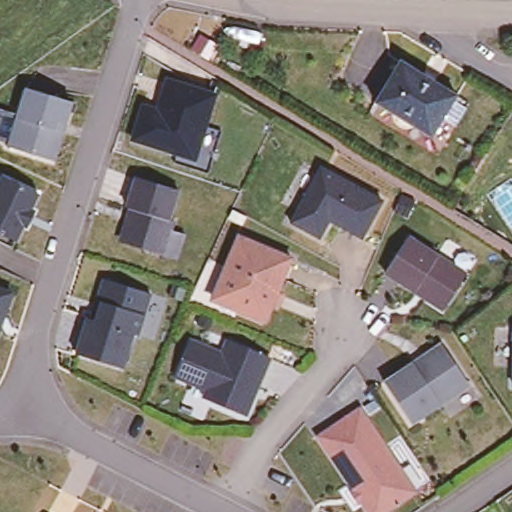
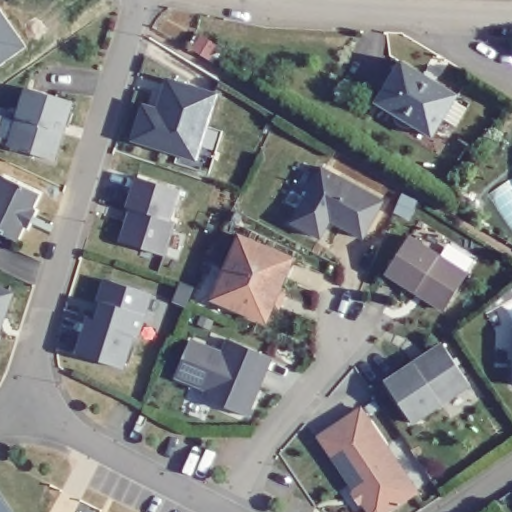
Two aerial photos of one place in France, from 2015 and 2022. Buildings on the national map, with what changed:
new [(25,47),(0,64),(0,12),(25,47)]
unchanged [(407,69),(428,82),(455,98),(430,139),(413,129),(412,130),(411,130),(409,131),(403,130),(398,129),(397,129),(392,124),(390,116),(386,113),(381,110),(373,105),(399,63),(407,69)]
unchanged [(197,162),(135,142),(141,122),(145,109),(159,114),(169,82),(217,97),(197,162)]
unchanged [(73,104),(55,162),(12,149),(30,91),(73,104)]
unchanged [(360,235),(327,217),(317,235),(288,220),(318,165),(380,198),(360,235)]
unchanged [(5,179),(41,196),(34,212),(37,214),(30,229),(26,227),(18,244),(0,234),(0,189),(5,179)]
unchanged [(129,210),(139,179),(180,192),(171,222),(176,224),(165,257),(127,246),(125,239),(128,227),(133,211),(129,210)]
unchanged [(276,307),(265,302),(257,317),(234,307),(236,303),(211,292),(236,233),(288,256),(276,287),(282,290),(276,307)]
unchanged [(387,274),(410,239),(469,277),(446,312),(427,300),(418,293),(387,274)]
unchanged [(105,278),(148,291),(135,332),(131,331),(120,366),(73,352),(85,315),(90,317),(96,294),(100,281),(105,278)]
unchanged [(5,288),(10,290),(0,319),(0,286),(5,288)]
unchanged [(512,339),(512,382),(510,382),(512,339)]
unchanged [(248,418),(206,402),(210,392),(177,378),(192,342),(225,357),(231,342),(272,359),(260,388),(255,399),(248,418)]
unchanged [(472,387),(415,426),(387,385),(416,365),(430,356),(445,347),(472,387)]
unchanged [(356,493),(320,438),(362,411),(418,494),(392,512),(370,512),(367,508),(368,502),(361,507),(353,496),(356,493)]

